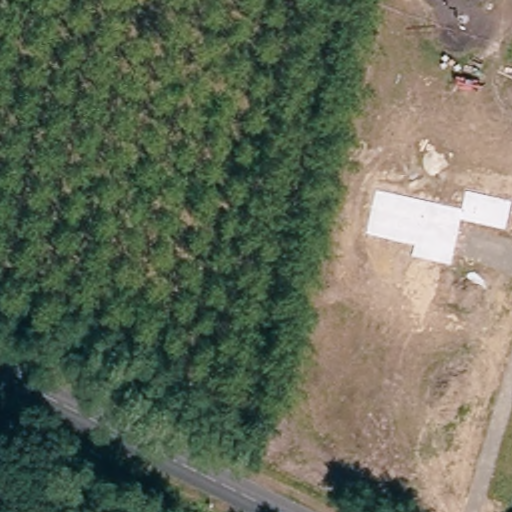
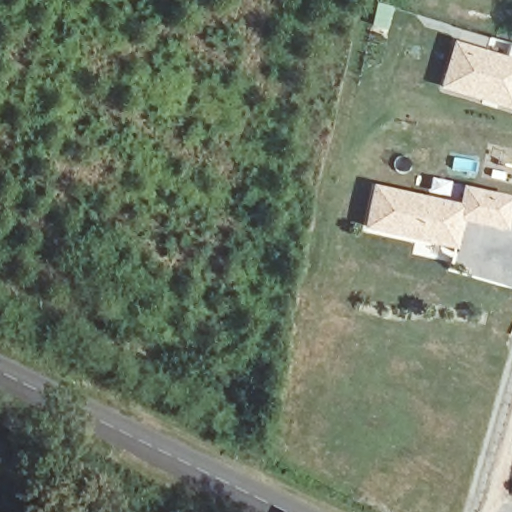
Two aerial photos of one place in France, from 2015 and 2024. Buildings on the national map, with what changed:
new [(506,57),(510,43),(512,44),(512,111),(440,90),(454,41),(506,57)]
new [(465,223),(458,248),(365,229),(375,186),(461,204),(464,186),(512,197),(512,215),(508,232),(465,223)]

